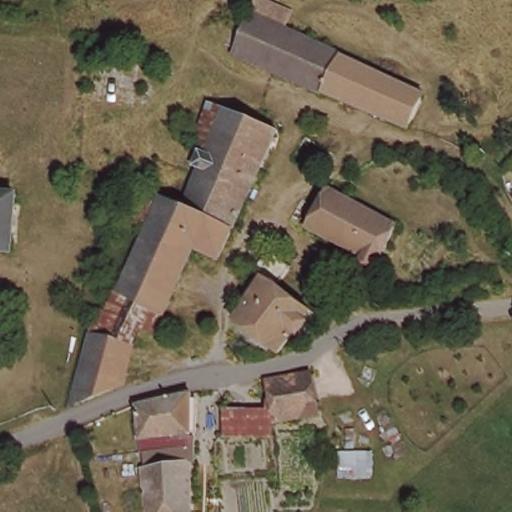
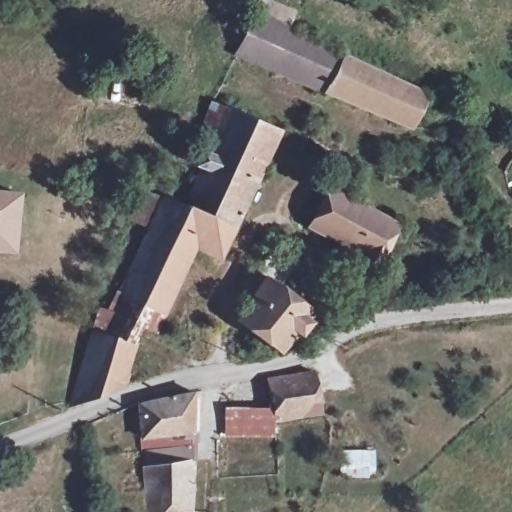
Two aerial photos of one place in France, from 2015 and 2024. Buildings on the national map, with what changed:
unchanged [(413,135),(243,58),(258,21),(264,7),(300,24),(296,39),(429,99),(413,135)]
unchanged [(198,215),(185,209),(205,160),(191,154),(213,102),(285,134),(236,234),(198,215)]
unchanged [(146,334),(141,343),(138,354),(128,390),(101,400),(74,412),(106,310),(115,314),(148,231),(129,223),(141,189),(162,198),(185,209),(198,215),(236,234),(223,261),(200,253),(168,315),(156,339),(146,334)]
unchanged [(394,222),(377,258),(316,225),(333,189),(394,222)]
unchanged [(0,196),(19,197),(16,253),(0,251),(0,196)]
unchanged [(319,323),(300,354),(284,341),(276,351),(236,324),(259,282),(273,291),(319,323)]
unchanged [(228,406),(274,406),(271,381),(313,372),(323,406),(278,422),(278,439),(227,437),(228,406)]
unchanged [(142,407),(191,404),(191,439),(173,439),(173,436),(143,438),(142,407)]
unchanged [(138,509),(154,508),(151,464),(150,449),(196,446),(196,462),(197,512),(138,512),(138,509)]

